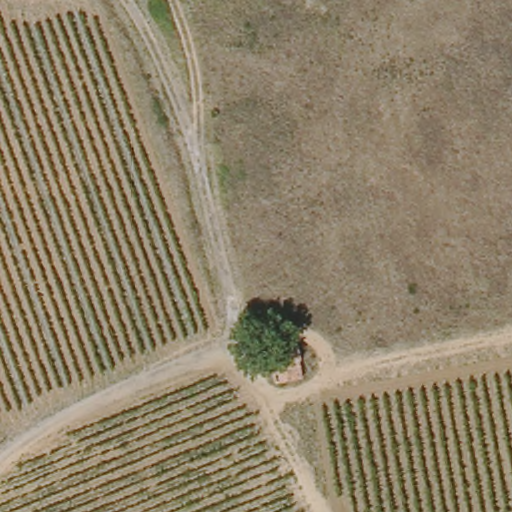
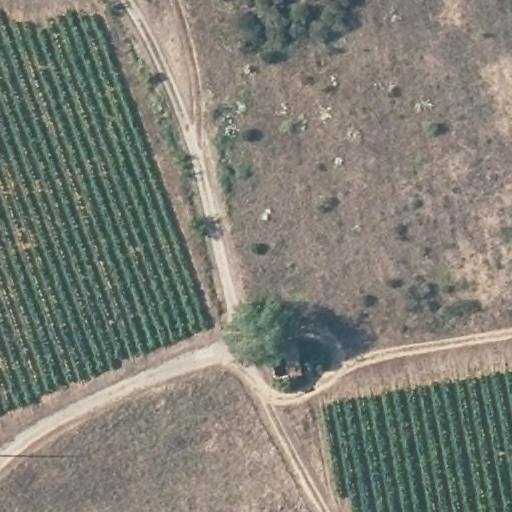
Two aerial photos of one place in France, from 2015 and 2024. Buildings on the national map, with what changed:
unchanged [(306,373),(273,376),(271,345),(304,342),(306,373)]

